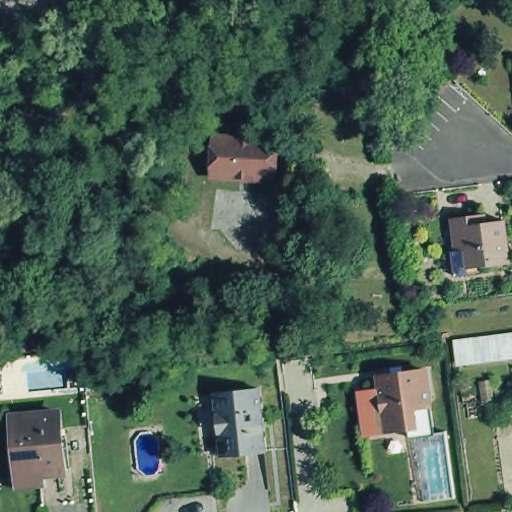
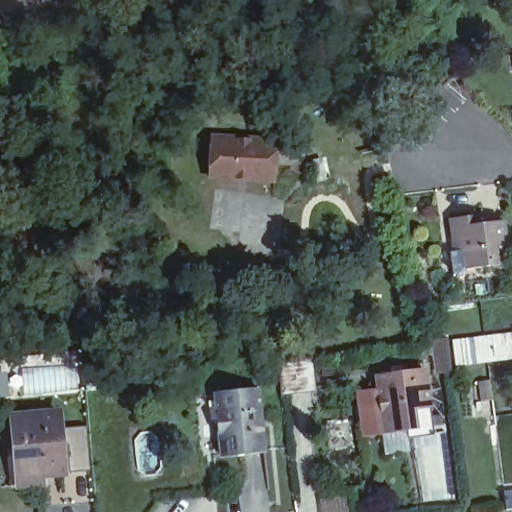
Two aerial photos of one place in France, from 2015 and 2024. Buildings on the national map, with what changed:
unchanged [(215,129),(280,135),(275,184),(210,179),(215,129)]
unchanged [(328,179),(322,179),(315,180),(313,176),(312,167),(312,161),(319,160),(322,175),(328,175),(328,179)]
unchanged [(470,273),(467,246),(472,245),(467,215),(500,211),(502,220),(512,219),(512,262),(489,265),(490,271),(470,273)]
unchanged [(452,341),(480,337),(512,334),(512,357),(484,360),(454,364),(452,341)]
unchanged [(420,362),(428,425),(405,427),(403,421),(380,423),(378,407),(372,407),(369,386),(375,385),(372,369),(420,362)]
unchanged [(261,388),(267,451),(223,455),(217,392),(261,388)]
unchanged [(15,475),(13,441),(22,440),(19,401),(64,399),(70,458),(48,460),(48,472),(15,475)]

